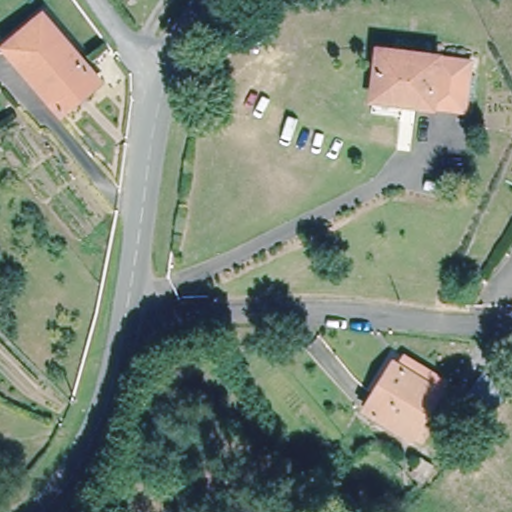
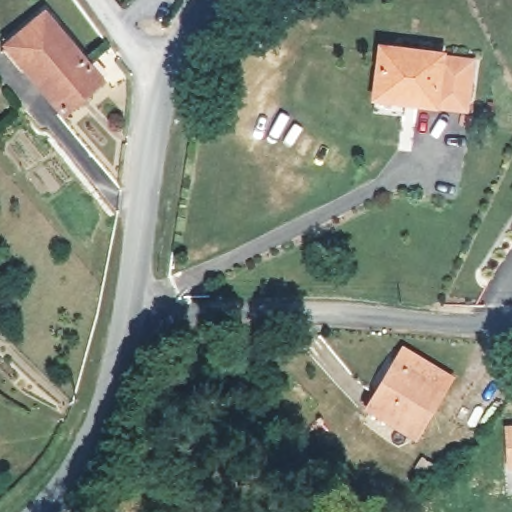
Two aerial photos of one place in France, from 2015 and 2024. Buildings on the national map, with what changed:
unchanged [(5,49),(47,16),(102,84),(60,118),(5,49)]
unchanged [(434,107),(414,105),(372,101),(378,50),(440,56),(434,107)]
unchanged [(440,56),(459,59),(470,60),(464,110),(452,109),(434,107),(440,56)]
unchanged [(368,410),(397,357),(400,358),(406,350),(449,377),(444,386),(414,440),(368,410)]
new [(507,471),(503,432),(512,432),(512,470),(507,471)]

